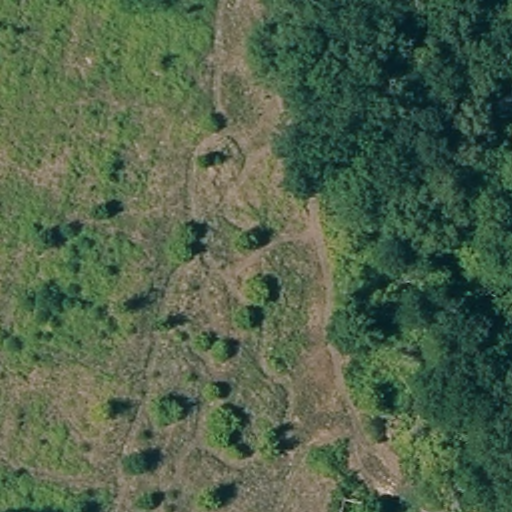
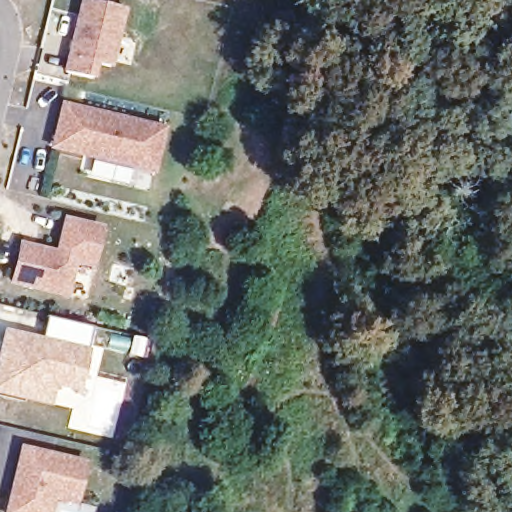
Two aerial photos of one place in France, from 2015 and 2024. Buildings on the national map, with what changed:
new [(91,0),(128,9),(115,68),(99,62),(96,78),(64,72),(80,0),(91,0)]
new [(63,100),(164,125),(154,166),(53,142),(63,100)]
new [(21,240),(54,247),(63,216),(104,225),(93,268),(76,265),(68,297),(9,283),(21,240)]
new [(0,339),(3,328),(43,336),(46,316),(91,328),(86,347),(90,348),(79,393),(56,387),(51,405),(0,393),(0,339)]
new [(19,460),(23,443),(86,458),(76,498),(53,492),(50,505),(35,501),(32,512),(15,512),(7,510),(13,484),(19,460)]

